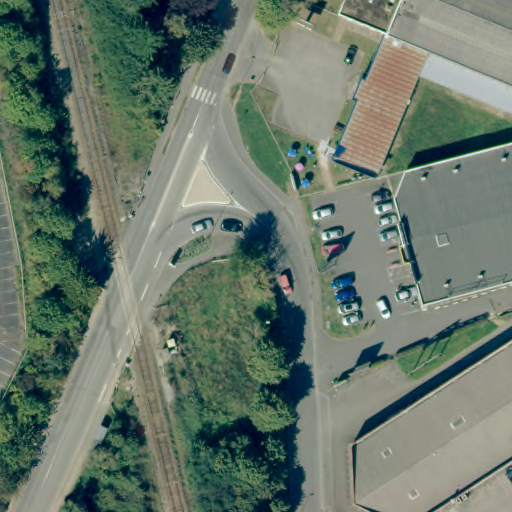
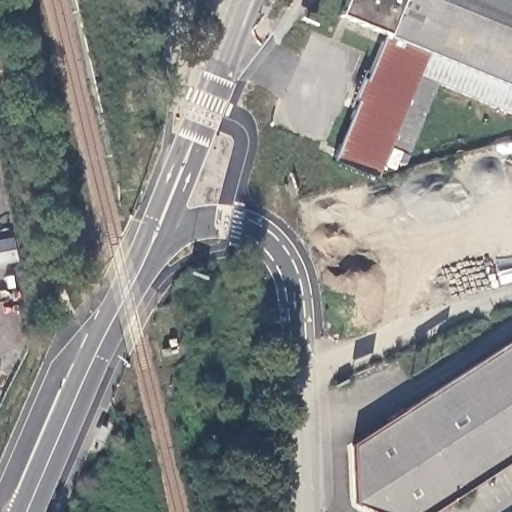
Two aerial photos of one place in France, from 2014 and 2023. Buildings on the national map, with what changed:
unchanged [(419,73),(376,172),(334,154),(357,98),(353,97),(362,75),(366,76),(386,29),(341,10),(345,0),(512,0),(512,111),(419,73)]
demolished [(421,302),(393,195),(404,169),(512,140),(512,278),(421,302)]
demolished [(226,293),(231,317),(236,337),(204,344),(199,323),(184,327),(176,294),(194,290),(196,296),(224,289),(226,293)]
unchanged [(431,512),(382,512),(363,497),(347,446),(512,339),(512,459),(431,512)]

